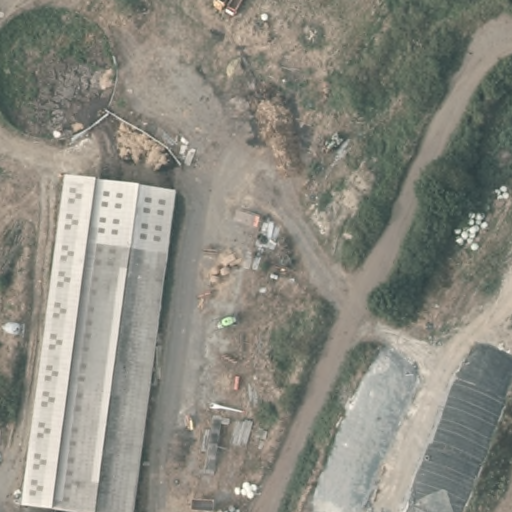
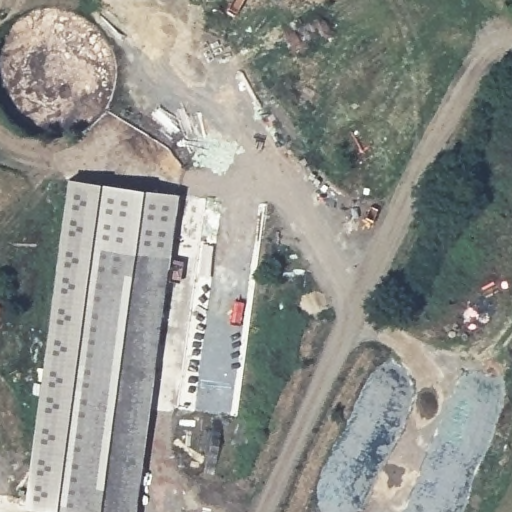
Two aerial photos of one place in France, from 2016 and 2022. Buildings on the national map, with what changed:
unchanged [(176,197),(133,512),(65,512),(1,505),(30,235),(37,175),(176,197)]

